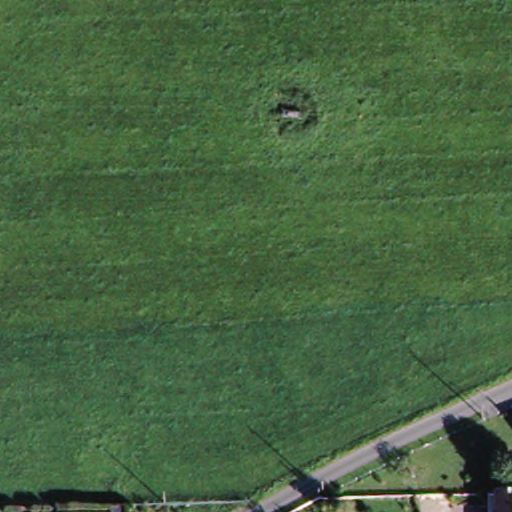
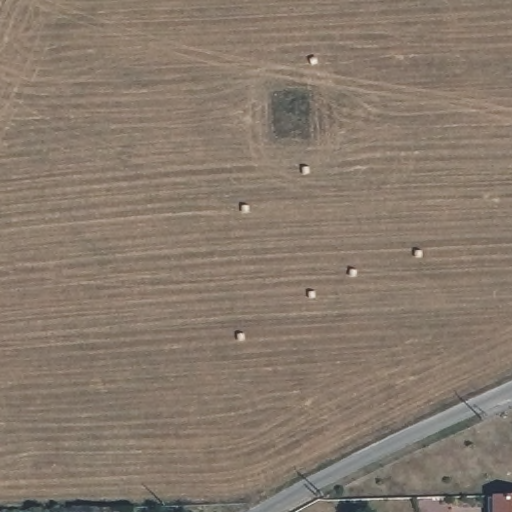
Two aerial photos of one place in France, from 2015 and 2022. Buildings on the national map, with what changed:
unchanged [(512,508),(512,512),(498,512),(498,508),(512,508)]

